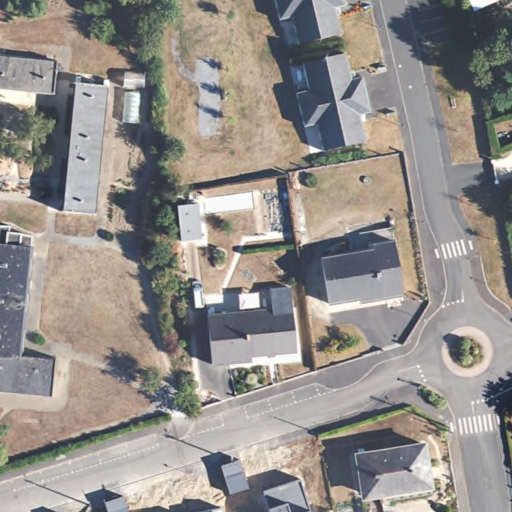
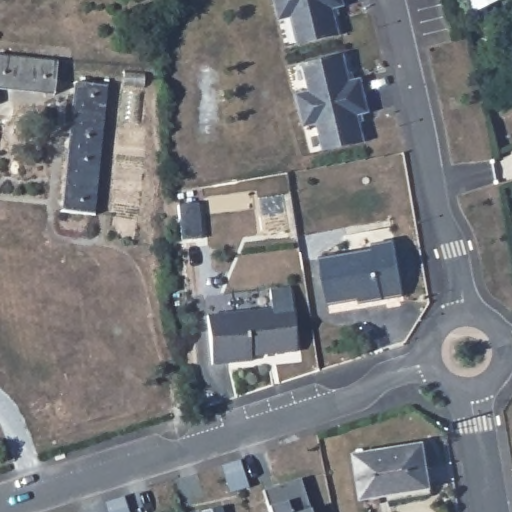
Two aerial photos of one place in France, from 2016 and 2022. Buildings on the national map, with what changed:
unchanged [(335,8),(340,34),(298,44),(292,17),(280,20),(275,0),(345,0),(346,6),(335,8)]
unchanged [(470,0),(499,0),(475,12),(470,0)]
unchanged [(345,54),(351,80),(362,77),(370,112),(360,115),(365,141),(323,151),(317,124),(305,127),(296,93),(309,90),(303,64),(345,54)]
unchanged [(54,99),(0,93),(0,62),(57,67),(54,99)]
unchanged [(105,91),(94,220),(62,217),(75,88),(105,91)]
unchanged [(197,203),(201,238),(181,240),(177,205),(197,203)]
demolished [(10,237),(20,237),(33,241),(21,361),(57,364),(53,402),(0,397),(0,230),(11,231),(10,237)]
unchanged [(375,254),(374,249),(395,246),(404,299),(382,302),(381,300),(359,304),(358,302),(329,307),(322,265),(352,260),(351,258),(375,254)]
unchanged [(290,306),(295,350),(251,355),(251,360),(211,363),(206,315),(290,306)]
unchanged [(424,448),(430,492),(388,499),(387,492),(380,492),(380,495),(361,498),(356,458),(424,448)]
new [(240,459),(250,487),(240,491),(230,493),(221,466),(231,462),(240,459)]
unchanged [(306,476),(313,512),(255,512),(250,487),(306,476)]
new [(125,496),(130,512),(108,512),(105,502),(115,498),(125,496)]
unchanged [(181,510),(224,501),(225,512),(182,512),(181,510)]

